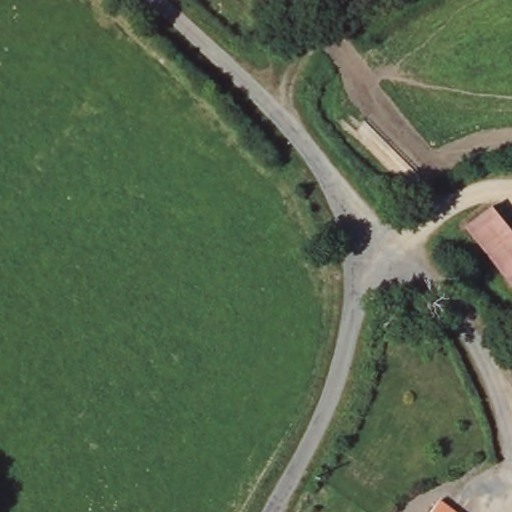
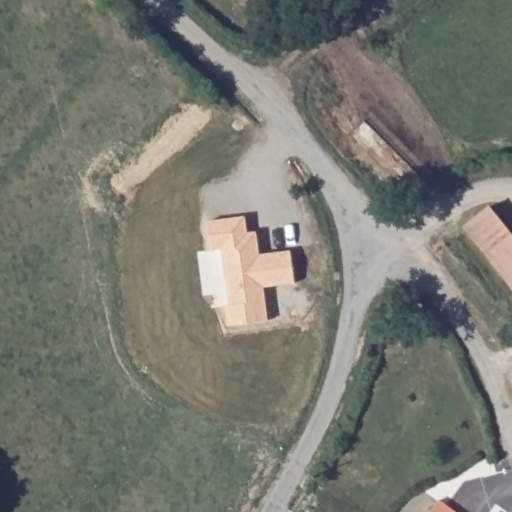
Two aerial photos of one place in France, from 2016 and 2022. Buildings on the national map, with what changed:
unchanged [(491,211),(512,235),(512,282),(467,232),(491,211)]
new [(248,234),(257,232),(258,241),(260,255),(291,251),(296,283),(264,287),(268,321),(229,326),(226,307),(230,306),(223,249),(212,251),(207,222),(246,217),(248,234)]
unchanged [(509,372),(512,370),(512,377),(509,372)]
unchanged [(435,497),(456,512),(424,512),(435,497)]

